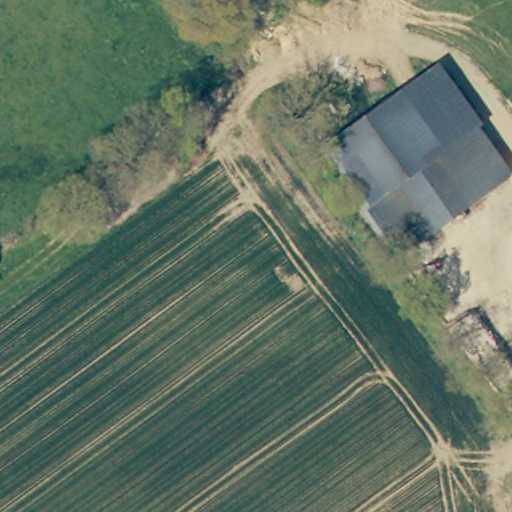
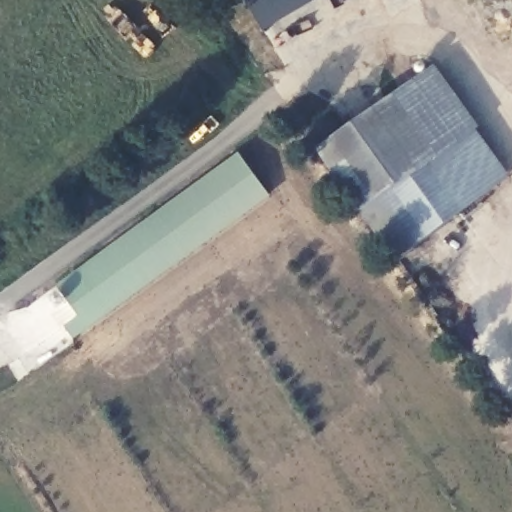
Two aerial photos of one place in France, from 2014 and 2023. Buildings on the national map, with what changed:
unchanged [(375,211),(327,146),(427,72),(474,138),(375,211)]
unchanged [(406,253),(375,211),(474,138),(505,182),(406,253)]
new [(270,197),(74,340),(65,327),(80,317),(55,287),(239,154),(270,197)]

